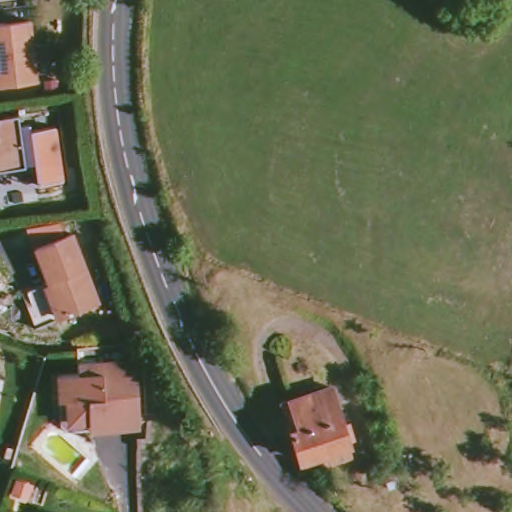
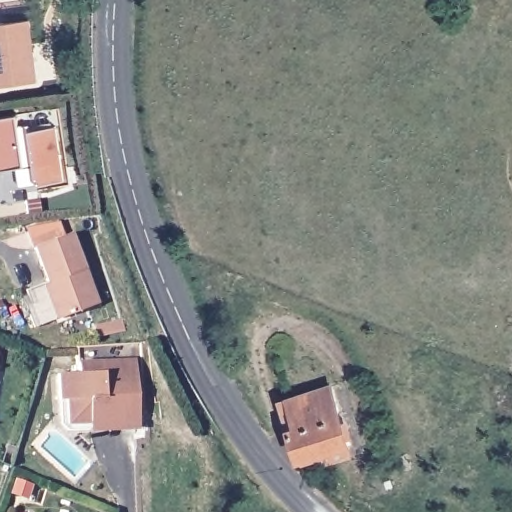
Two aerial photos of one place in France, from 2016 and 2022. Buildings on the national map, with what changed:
unchanged [(36,82),(0,86),(0,23),(29,20),(36,82)]
unchanged [(14,126),(25,125),(25,130),(50,126),(58,181),(33,185),(30,165),(0,170),(0,117),(13,115),(14,126)]
unchanged [(35,327),(21,291),(48,281),(35,247),(71,233),(98,303),(35,327)]
unchanged [(104,425),(104,420),(90,421),(91,431),(75,432),(68,427),(68,410),(60,410),(59,384),(79,383),(78,373),(103,371),(136,370),(137,377),(139,422),(104,425)]
unchanged [(329,462),(326,452),(299,460),(291,431),(282,402),(289,400),(331,387),(349,446),(343,448),(345,457),(329,462)]

